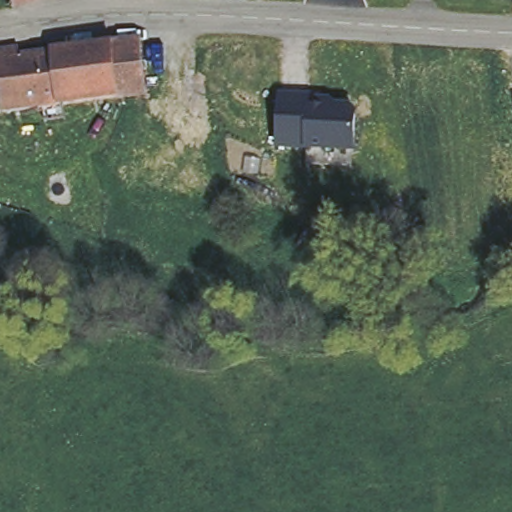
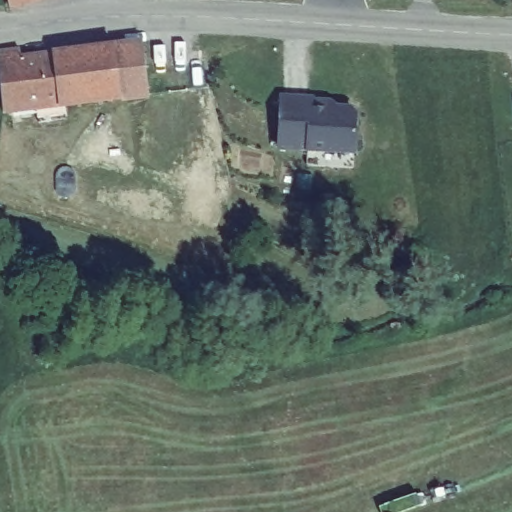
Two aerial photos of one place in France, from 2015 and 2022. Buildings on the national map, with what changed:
unchanged [(140,44),(147,95),(61,105),(56,54),(140,44)]
unchanged [(61,105),(4,112),(0,87),(0,62),(56,54),(61,105)]
unchanged [(307,162),(309,145),(279,144),(282,93),(311,95),(310,103),(351,105),(357,112),(355,148),(354,165),(307,162)]

